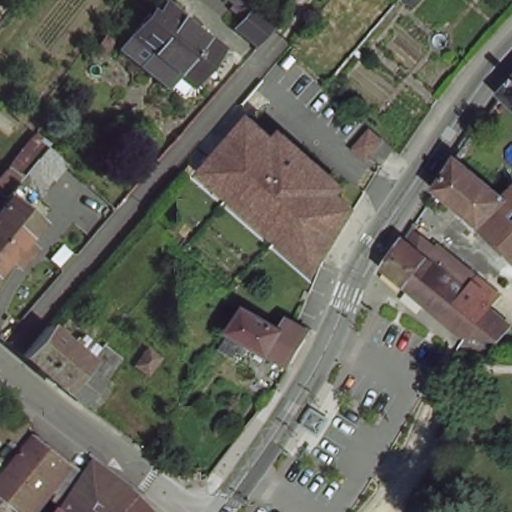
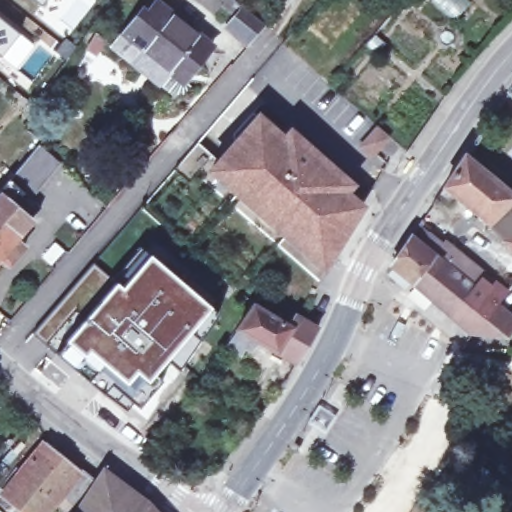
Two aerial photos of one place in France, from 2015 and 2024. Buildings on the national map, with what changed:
unchanged [(218,20),(235,0),(257,17),(240,38),(218,20)]
unchanged [(209,49),(181,84),(127,42),(155,8),(209,49)]
unchanged [(510,95),(512,93),(512,96),(510,95)]
unchanged [(213,152),(253,107),(278,129),(285,122),(297,132),(335,166),(345,175),(339,183),(355,197),(323,249),(213,152)]
unchanged [(388,137),(388,138),(372,157),(360,147),(377,128),(377,127),(388,137)]
unchanged [(31,140),(0,177),(0,155),(20,131),(31,140)]
unchanged [(0,252),(0,177),(31,140),(35,136),(55,152),(24,187),(34,196),(23,209),(7,227),(19,237),(3,255),(0,252)]
unchanged [(317,260),(205,161),(213,152),(323,249),(317,260)]
unchanged [(490,225),(485,228),(484,227),(480,224),(485,220),(457,197),(448,207),(437,198),(465,157),(510,197),(512,195),(512,247),(490,225)]
unchanged [(423,295),(391,270),(411,238),(421,246),(428,237),(443,249),(437,259),(445,265),(423,295)]
new [(127,410),(102,392),(57,352),(32,332),(93,262),(112,278),(140,247),(148,255),(210,307),(218,315),(200,340),(178,370),(146,419),(130,405),(127,410)]
unchanged [(437,259),(443,249),(447,252),(450,250),(459,257),(475,270),(467,282),(512,316),(512,327),(502,339),(485,335),(467,330),(453,320),(452,319),(425,297),(423,295),(445,265),(437,259)]
unchanged [(240,346),(235,354),(224,347),(235,330),(248,307),(286,329),(295,318),(313,327),(317,330),(297,364),(258,342),(250,353),(240,346)]
demolished [(63,388),(21,354),(47,323),(89,357),(82,365),(63,388)]
unchanged [(318,407),(334,416),(325,432),(309,422),(318,407)]
unchanged [(55,487),(36,512),(26,512),(0,492),(0,489),(40,439),(72,465),(90,479),(72,499),(55,487)]
unchanged [(146,512),(71,512),(102,470),(146,512)]

